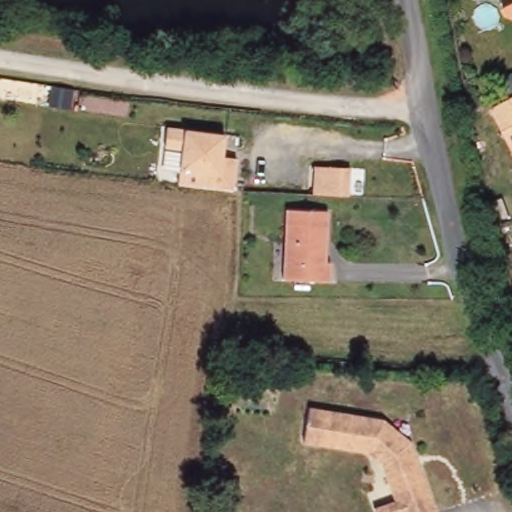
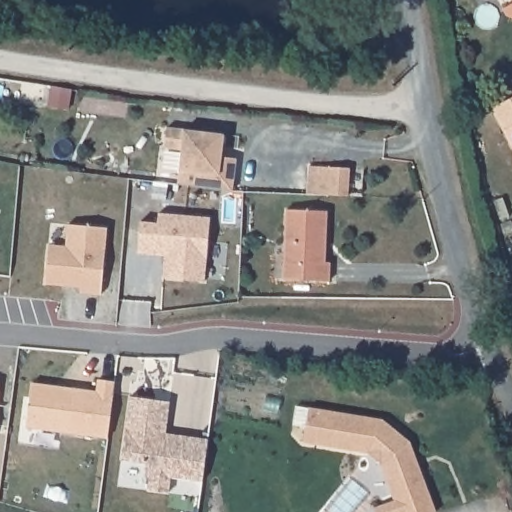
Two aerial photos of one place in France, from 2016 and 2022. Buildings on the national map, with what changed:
unchanged [(503,16),(499,9),(512,3),(512,19),(503,16)]
unchanged [(490,106),(511,96),(512,95),(512,123),(501,129),(490,106)]
unchanged [(501,129),(512,123),(512,150),(501,129)]
unchanged [(178,184),(179,173),(180,148),(165,146),(168,126),(184,127),(226,133),(223,156),(236,159),(233,190),(178,184)]
new [(352,197),(332,196),(312,196),(313,168),(333,169),(353,169),(352,197)]
unchanged [(325,209),(324,260),(328,260),(327,279),(283,278),(284,208),(325,209)]
new [(141,222),(159,224),(160,214),(211,219),(205,283),(164,279),(166,257),(138,255),(141,222)]
new [(46,285),(49,246),(67,247),(69,225),(108,229),(102,295),(81,294),(82,288),(64,286),(46,285)]
new [(33,384),(98,392),(100,380),(116,382),(109,439),(27,428),(33,384)]
new [(172,404),(168,436),(178,437),(211,441),(205,483),(174,479),(171,495),(150,493),(152,480),(147,479),(149,465),(124,462),(133,398),(172,404)]
unchanged [(382,470),(365,454),(303,442),(309,407),(383,421),(410,444),(436,512),(399,512),(382,470)]

